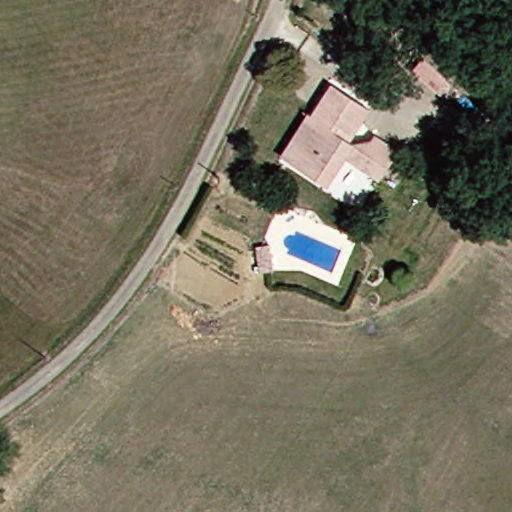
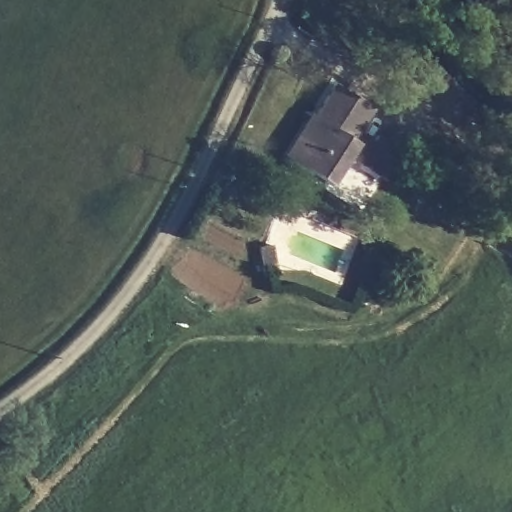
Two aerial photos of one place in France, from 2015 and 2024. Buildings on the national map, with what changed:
unchanged [(436,81),(408,64),(414,52),(428,59),(444,68),(441,73),(436,81)]
unchanged [(302,118),(308,121),(329,88),(364,109),(344,144),(361,153),(370,138),(393,152),(376,180),(342,159),(324,189),(288,166),(276,158),(302,118)]
unchanged [(273,275),(262,279),(256,253),(267,250),(273,275)]

